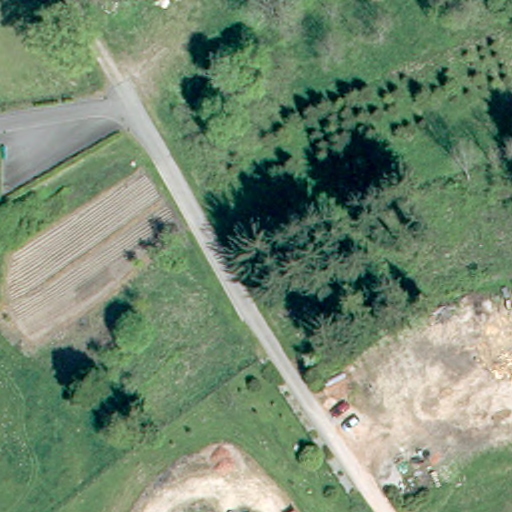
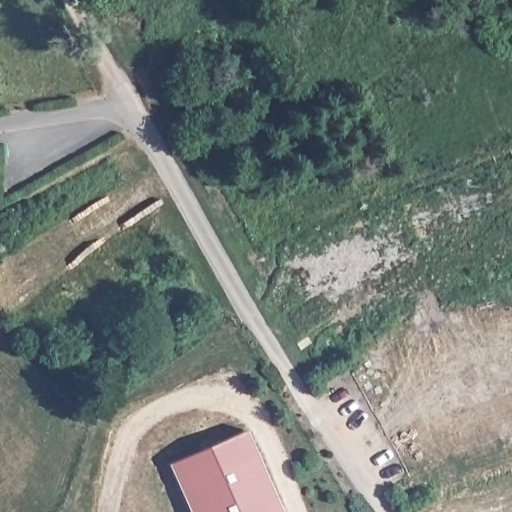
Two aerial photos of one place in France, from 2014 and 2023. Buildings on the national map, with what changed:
new [(170,462),(245,430),(280,512),(193,512),(170,462)]

